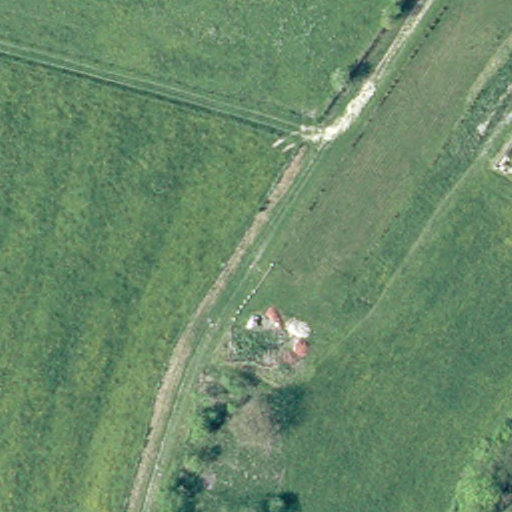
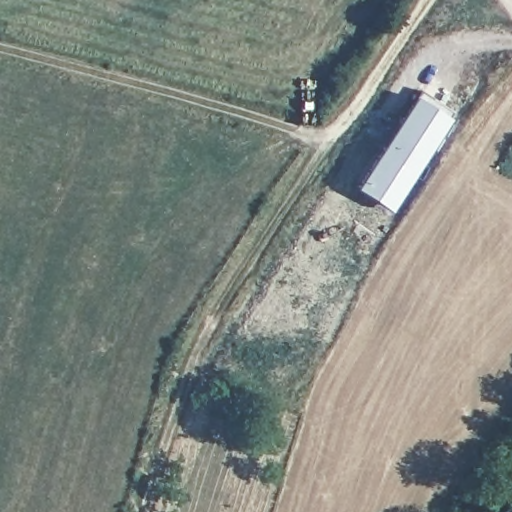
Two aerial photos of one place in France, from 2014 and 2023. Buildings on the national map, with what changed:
new [(390,212),(355,190),(416,97),(451,120),(390,212)]

